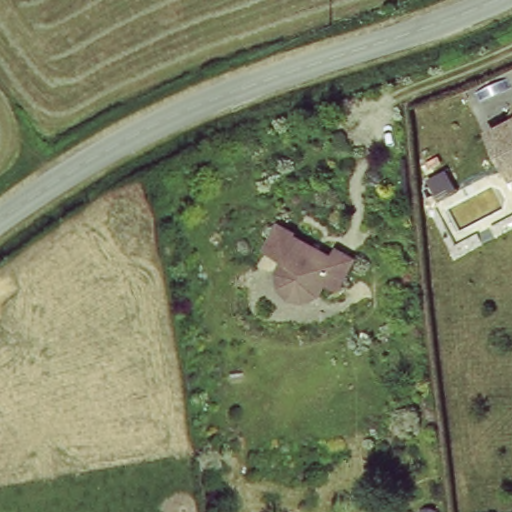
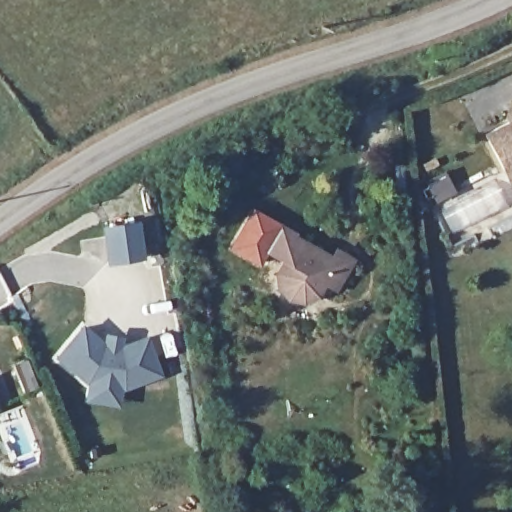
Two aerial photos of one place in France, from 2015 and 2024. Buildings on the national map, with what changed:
unchanged [(507,172),(488,135),(512,120),(512,180),(512,181),(507,172)]
new [(99,226),(137,220),(142,260),(104,265),(99,226)]
unchanged [(273,220),(289,226),(287,230),(329,248),(331,243),(348,251),(334,280),(318,272),(309,286),(289,292),(274,280),(270,269),(277,256),(261,249),(273,220)]
new [(101,340),(103,333),(123,336),(122,344),(146,335),(161,376),(121,391),(117,407),(82,401),(86,384),(54,357),(81,324),(101,340)]

